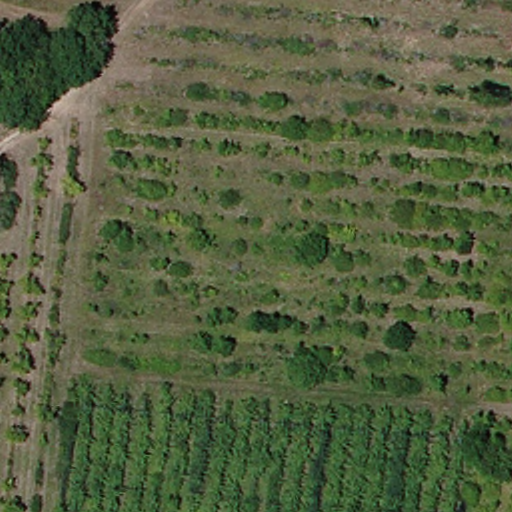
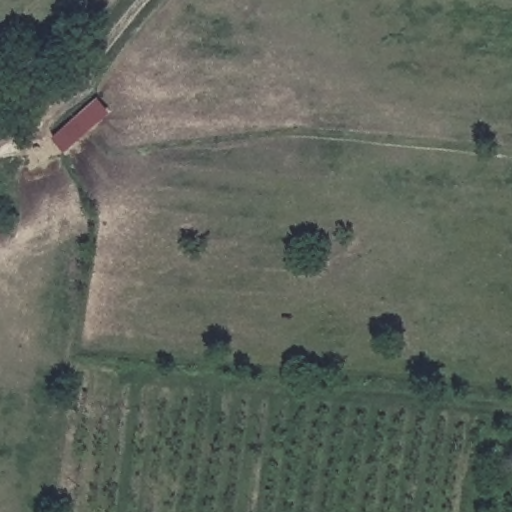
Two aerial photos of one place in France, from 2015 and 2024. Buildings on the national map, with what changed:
new [(70,153),(55,138),(100,96),(114,111),(70,153)]

